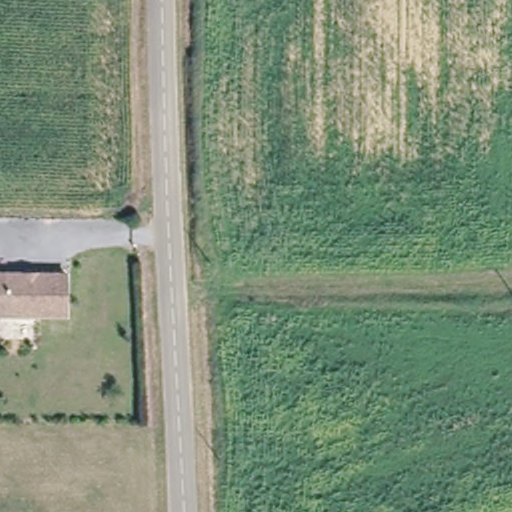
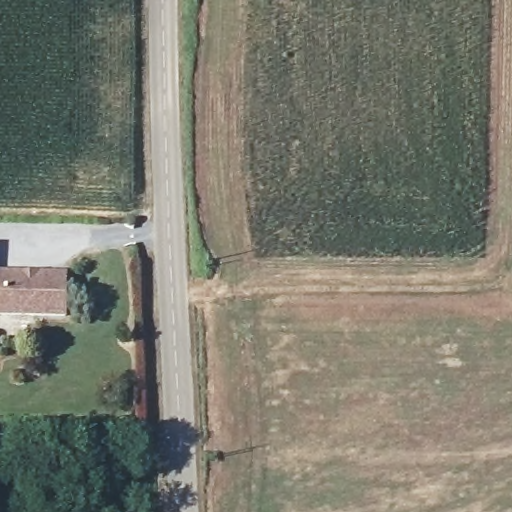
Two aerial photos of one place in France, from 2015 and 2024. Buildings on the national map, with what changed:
unchanged [(68,314),(0,313),(0,268),(69,269),(68,314)]

